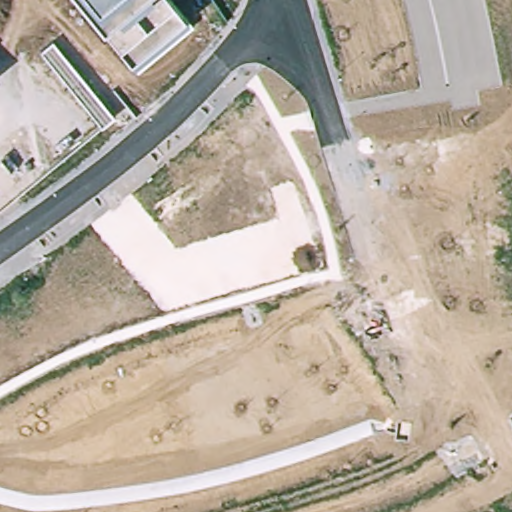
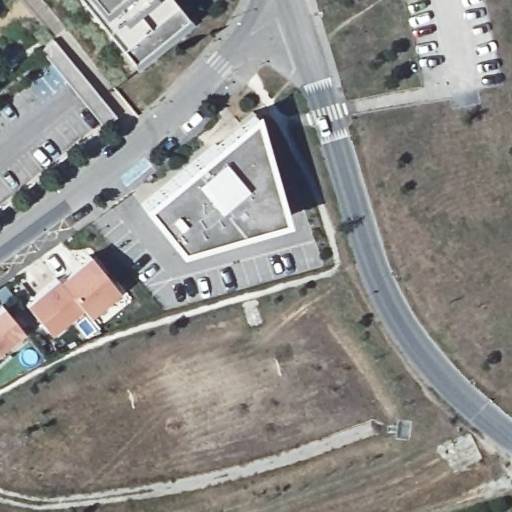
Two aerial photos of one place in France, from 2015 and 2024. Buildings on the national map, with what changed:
unchanged [(130,59),(103,28),(79,0),(173,0),(185,14),(130,59)]
new [(51,38),(114,115),(101,125),(39,49),(51,38)]
new [(253,119),(280,226),(174,252),(139,207),(253,119)]
new [(89,256),(116,289),(85,314),(78,306),(58,281),(89,256)]
new [(56,279),(58,281),(78,306),(47,332),(24,305),(56,279)]
new [(21,330),(0,348),(0,306),(21,330)]

